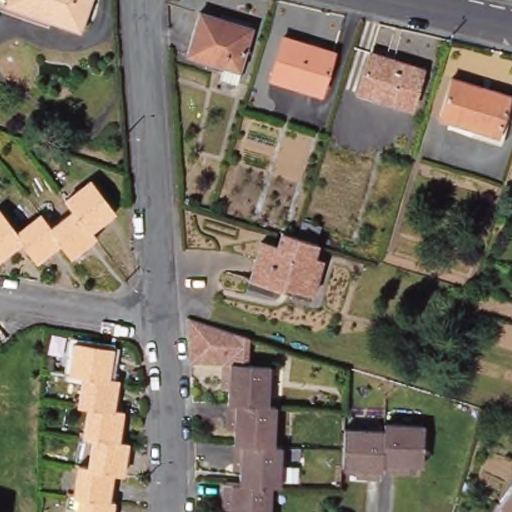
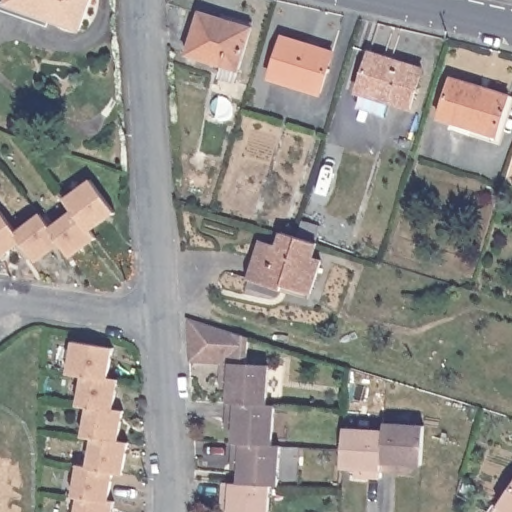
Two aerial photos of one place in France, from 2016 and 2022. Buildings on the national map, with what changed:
unchanged [(79,26),(4,1),(4,0),(87,0),(79,26)]
unchanged [(223,78),(226,66),(190,56),(202,13),(255,29),(242,71),(238,83),(223,78)]
unchanged [(323,94),(273,79),(285,38),(335,53),(323,94)]
unchanged [(413,109),(361,92),(373,52),(425,68),(413,109)]
unchanged [(442,118),(455,77),(512,94),(512,96),(500,136),(442,118)]
unchanged [(53,226),(77,209),(69,198),(93,180),(116,210),(92,228),(97,236),(73,254),(63,241),(39,258),(24,239),(0,256),(0,209),(1,208),(19,231),(43,213),(53,226)]
unchanged [(286,233),(294,236),(318,243),(315,255),(323,259),(313,293),(284,284),(282,289),(250,279),(262,239),(278,244),(282,232),(286,233)]
unchanged [(251,364),(228,363),(195,361),(193,317),(199,319),(253,335),(251,364)]
unchanged [(83,406),(88,379),(74,376),(79,347),(116,355),(111,383),(121,385),(116,412),(126,415),(120,444),(130,446),(125,475),(115,473),(110,500),(115,501),(114,512),(79,512),(82,495),(77,494),(82,466),(92,468),(97,440),(87,438),(93,408),(83,406)]
unchanged [(234,385),(226,384),(228,363),(251,364),(274,365),(272,405),(234,403),(234,385)]
unchanged [(240,425),(233,425),(234,403),(272,405),(280,405),(278,445),(239,443),(240,425)]
unchanged [(384,430),(385,423),(424,425),(422,464),(402,463),(401,469),(382,468),(384,430)]
unchanged [(362,474),(362,467),(343,466),(344,449),(345,427),(384,430),(382,468),(381,475),(362,474)]
unchanged [(278,445),(286,446),(283,485),(276,485),(245,484),(246,465),(239,465),(239,443),(278,445)]
unchanged [(237,512),(237,504),(228,504),(229,483),(245,484),(276,485),(275,512),(237,512)]
unchanged [(512,493),(512,512),(500,512),(499,511),(512,493)]

